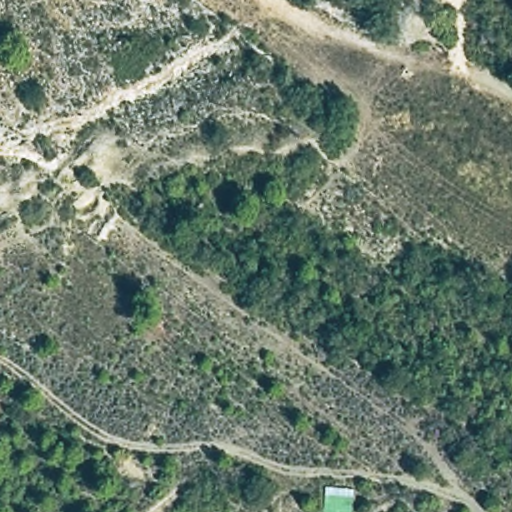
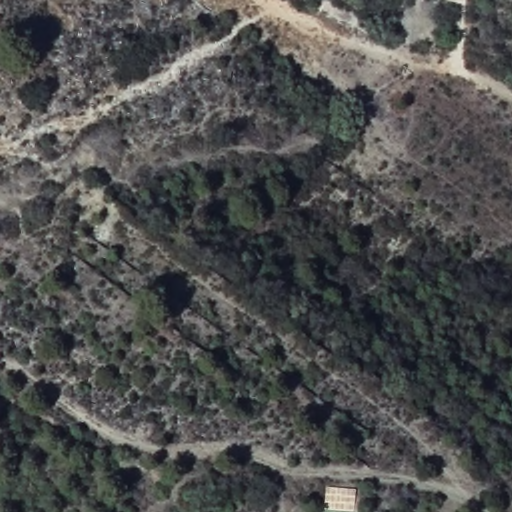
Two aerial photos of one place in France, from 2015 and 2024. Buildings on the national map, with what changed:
[]

